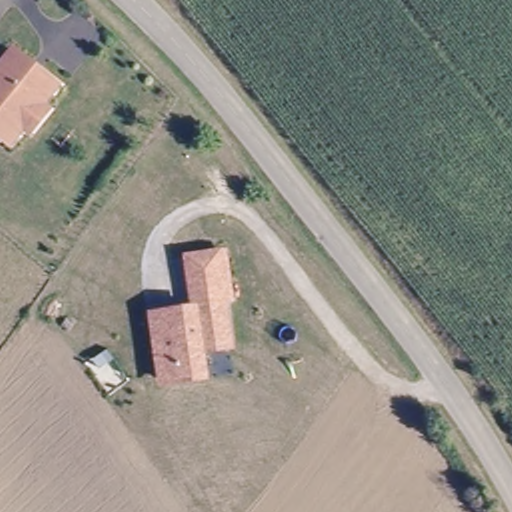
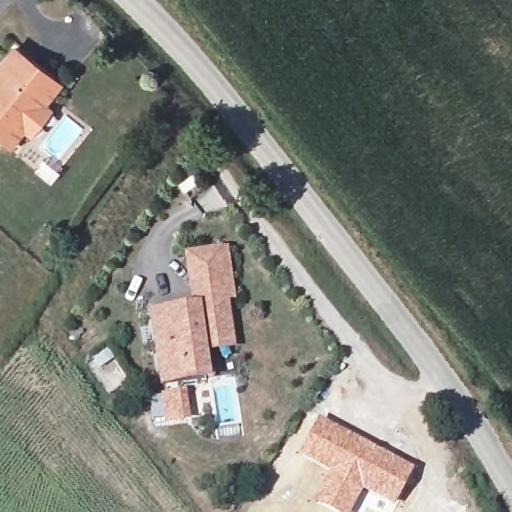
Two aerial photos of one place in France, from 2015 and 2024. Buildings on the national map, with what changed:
unchanged [(32,130),(27,125),(12,141),(0,131),(0,66),(15,48),(60,83),(43,103),(49,108),(32,130)]
unchanged [(147,312),(190,304),(182,255),(227,248),(236,303),(229,303),(236,348),(205,355),(209,379),(159,388),(147,312)]
new [(347,434),(413,470),(393,508),(362,493),(351,512),(325,512),(311,504),(325,473),(297,458),(316,419),(347,434)]

